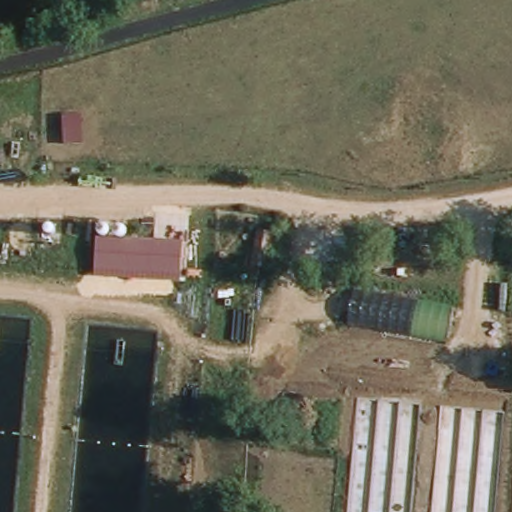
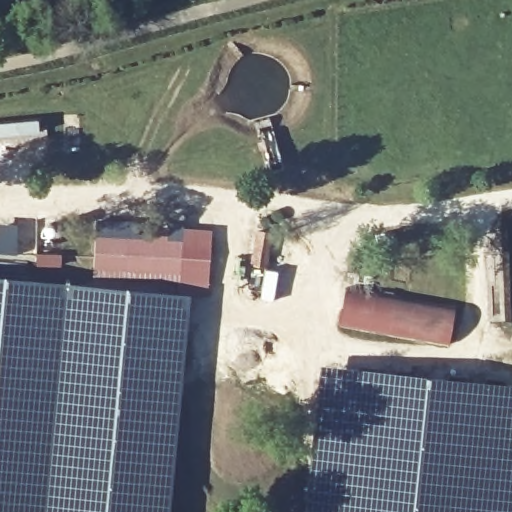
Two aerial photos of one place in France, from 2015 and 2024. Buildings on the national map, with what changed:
unchanged [(185,222),(184,230),(213,230),(210,292),(182,293),(181,281),(95,276),(99,225),(185,222)]
new [(15,255),(0,254),(0,223),(17,225),(15,255)]
unchanged [(260,232),(277,234),(271,271),(254,268),(260,232)]
new [(0,512),(0,277),(190,295),(169,512),(0,512)]
unchanged [(360,290),(456,308),(447,345),(352,326),(360,290)]
new [(307,512),(320,365),(512,385),(512,512),(307,512)]

